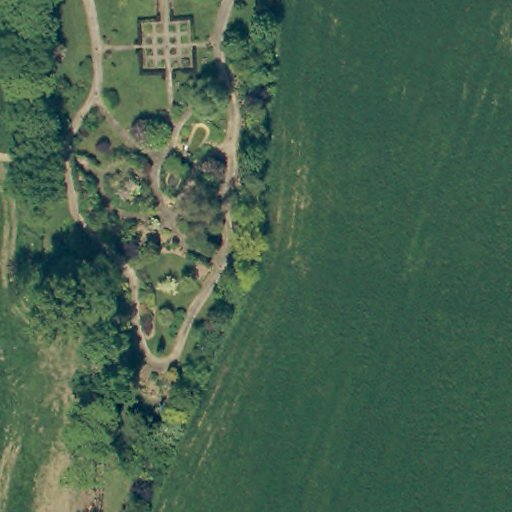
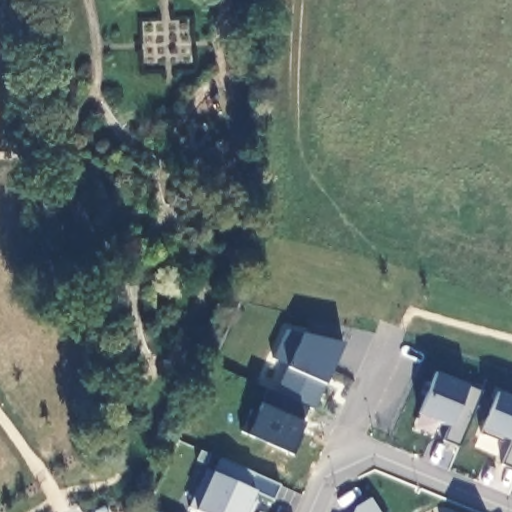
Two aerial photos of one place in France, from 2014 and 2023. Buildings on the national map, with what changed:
new [(288,366),(273,358),(286,330),(343,343),(314,410),(276,392),(288,366)]
new [(453,450),(437,443),(443,427),(414,414),(430,372),(477,392),(453,450)]
new [(503,442),(483,434),(483,431),(500,392),(512,397),(512,441),(504,438),(503,442)]
new [(512,446),(512,469),(503,465),(512,446)]
new [(272,500),(256,492),(254,497),(258,501),(253,512),(199,512),(195,510),(191,508),(207,470),(213,472),(221,458),(255,473),(280,485),(272,500)]
new [(380,512),(353,512),(355,507),(371,497),(380,512)]

